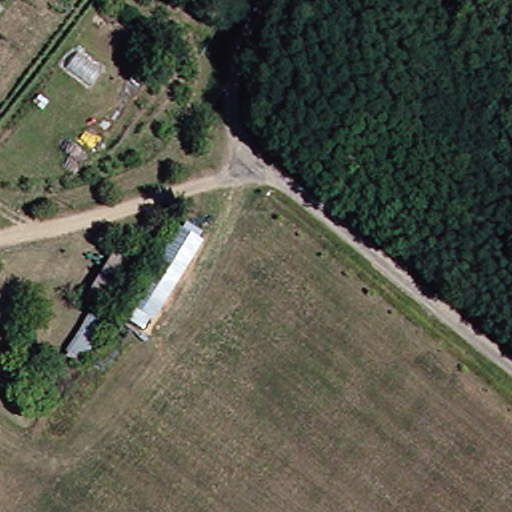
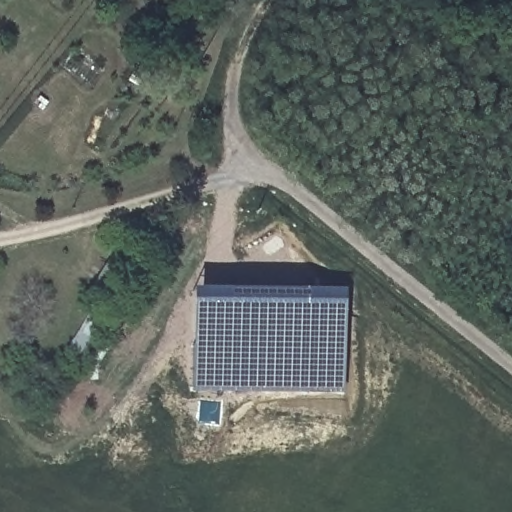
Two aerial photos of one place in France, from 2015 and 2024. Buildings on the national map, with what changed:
unchanged [(202,249),(151,329),(136,320),(185,240),(202,249)]
demolished [(138,258),(105,308),(79,294),(111,242),(138,258)]
new [(345,392),(192,392),(192,288),(346,289),(345,392)]

